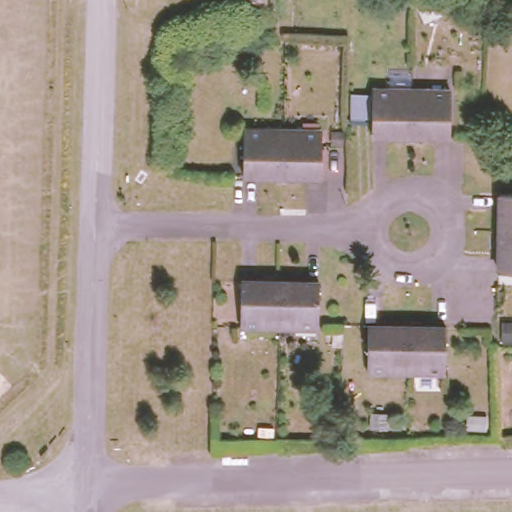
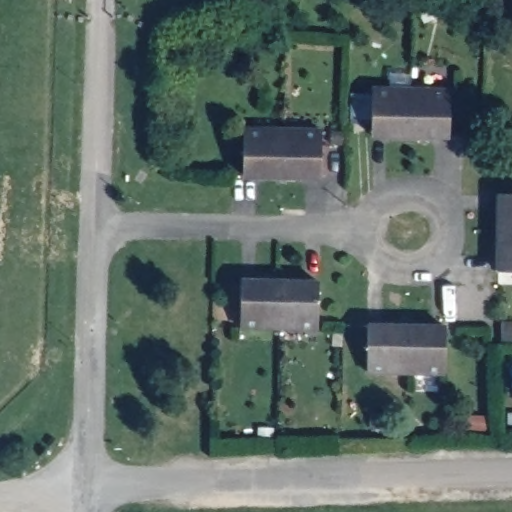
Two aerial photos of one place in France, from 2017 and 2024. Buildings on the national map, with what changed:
unchanged [(366,84),(408,85),(408,133),(365,133),(366,84)]
unchanged [(408,85),(444,85),(443,134),(408,133),(408,85)]
unchanged [(241,126),(281,127),(279,172),(239,172),(241,126)]
unchanged [(281,127),(316,126),(315,172),(279,172),(281,127)]
unchanged [(499,187),(512,186),(512,225),(498,225),(499,187)]
unchanged [(498,225),(512,225),(512,267),(499,267),(498,225)]
unchanged [(241,277),(280,278),(279,324),(240,324),(241,277)]
unchanged [(280,278),(317,279),(316,324),(279,324),(280,278)]
unchanged [(361,322),(402,322),(401,367),(361,366),(361,322)]
unchanged [(402,322),(440,322),(439,368),(401,367),(402,322)]

